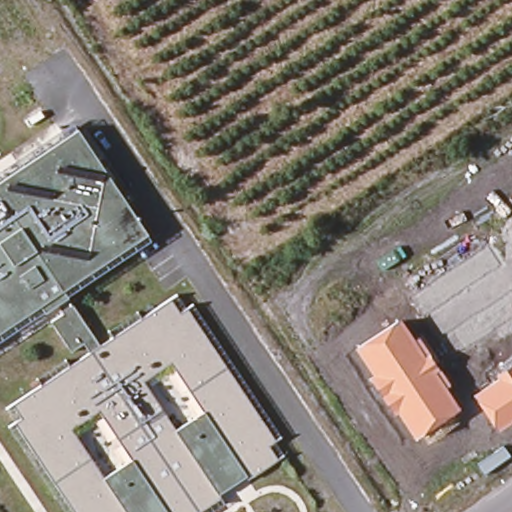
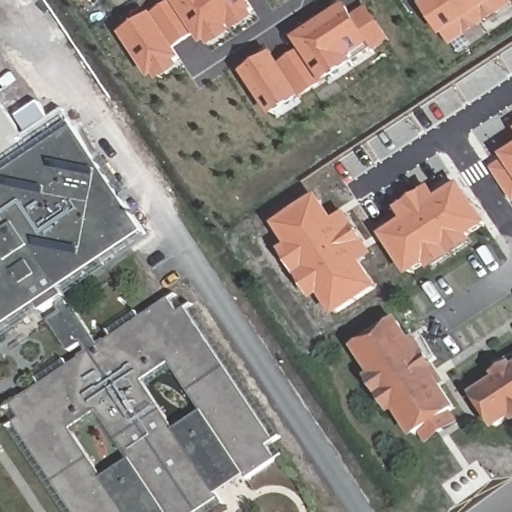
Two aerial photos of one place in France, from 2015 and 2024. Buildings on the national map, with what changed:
new [(153,17),(179,0),(180,0),(183,5),(191,0),(247,0),(253,10),(205,42),(198,31),(173,48),(180,59),(155,76),(130,41),(126,35),(153,17)]
new [(183,5),(180,0),(191,0),(183,5)]
new [(288,106),(280,95),(267,104),(247,74),(259,65),(263,71),(310,40),(306,34),(333,16),(356,0),(359,0),(362,4),(386,39),(361,57),(354,46),(328,63),(336,74),(288,106)]
new [(452,43),(427,6),(436,0),(509,0),(511,3),(452,43)]
new [(281,51),(306,34),(310,40),(284,57),(281,51)]
new [(2,179),(0,176),(0,100),(37,155),(2,179)]
unchanged [(0,327),(0,180),(71,132),(144,233),(115,254),(0,327)]
new [(495,170),(508,162),(503,156),(512,150),(512,196),(495,170)]
new [(463,183),(490,225),(473,236),(477,242),(432,270),(429,264),(409,277),(383,236),(405,221),(397,208),(432,186),(440,198),(463,183)]
new [(349,211),(377,256),(365,263),(381,290),(338,317),(323,297),(315,302),(281,251),(290,245),(276,224),(320,195),(335,220),(349,211)]
unchanged [(244,475),(218,492),(221,497),(198,512),(71,512),(13,425),(21,417),(11,405),(168,303),(177,313),(186,311),(273,440),(267,445),(277,459),(250,480),(244,475)]
unchanged [(452,415),(458,424),(427,443),(422,436),(416,440),(395,410),(390,413),(369,378),(373,375),(356,349),(400,320),(414,341),(418,338),(450,386),(446,388),(459,408),(452,415)]
unchanged [(512,368),(512,421),(499,431),(475,393),(512,368)]

